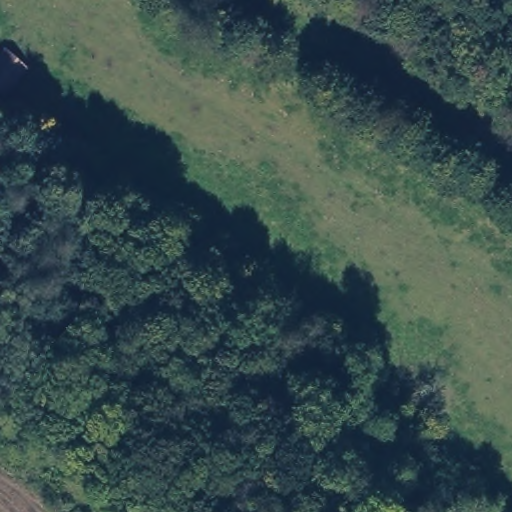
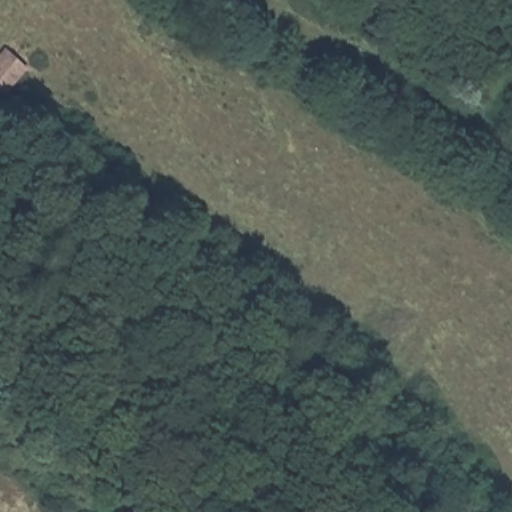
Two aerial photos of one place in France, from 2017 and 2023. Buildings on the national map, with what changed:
unchanged [(19,65),(0,87),(0,51),(1,49),(19,65)]

